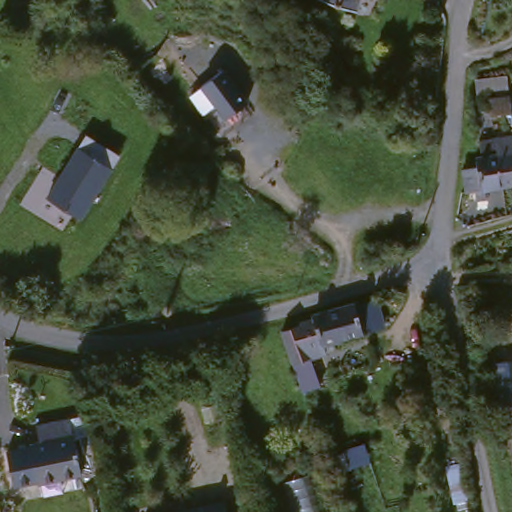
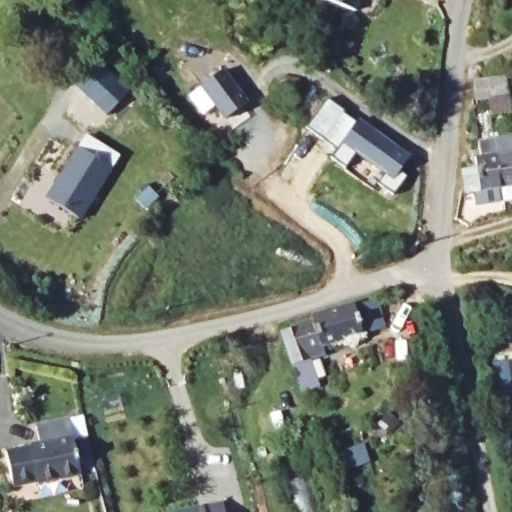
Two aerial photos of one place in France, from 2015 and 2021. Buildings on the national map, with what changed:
unchanged [(339,0),(363,0),(360,7),(339,0)]
unchanged [(506,73),(509,90),(489,93),(478,94),(476,75),(506,71),(506,73)]
unchanged [(245,112),(224,127),(200,94),(221,79),(245,112)]
unchanged [(489,93),(509,91),(511,107),(491,109),(489,93)]
new [(323,137),(304,124),(326,96),(343,109),(342,111),(358,123),(360,121),(412,159),(400,176),(407,181),(395,198),(380,186),(387,175),(359,155),(348,170),(332,158),(339,149),(323,137)]
unchanged [(512,181),(507,182),(500,134),(512,132),(512,181)]
unchanged [(85,133),(120,154),(80,219),(45,196),(85,133)]
unchanged [(481,196),(480,186),(470,188),(470,187),(467,165),(481,163),(480,153),(486,152),(483,136),(500,134),(507,182),(490,185),(491,194),(481,196)]
unchanged [(354,299),(363,330),(320,342),(322,350),(310,353),(320,382),(304,388),(281,327),(313,316),(311,313),(311,312),(311,311),(312,311),(312,310),(313,310),(313,309),(354,299)]
unchanged [(512,332),(512,362),(505,334),(512,332)]
unchanged [(57,475),(57,473),(32,477),(26,443),(51,438),(50,436),(60,434),(56,417),(90,411),(100,466),(57,475)]
unchanged [(227,498),(231,512),(167,512),(227,498)]

